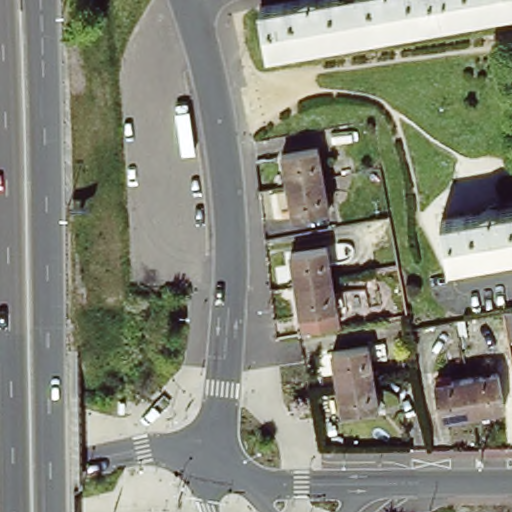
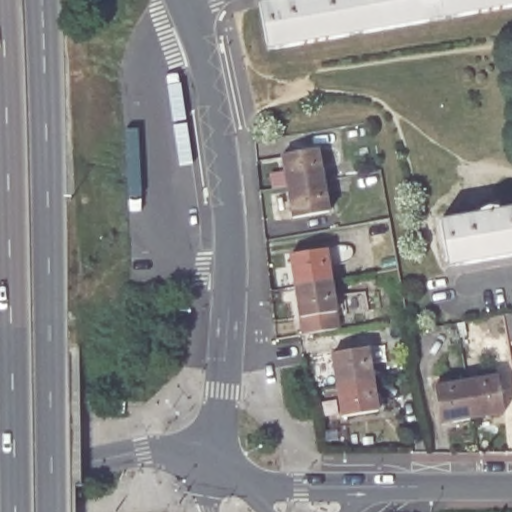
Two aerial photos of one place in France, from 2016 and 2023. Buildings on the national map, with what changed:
unchanged [(260,6),(291,0),(512,0),(512,9),(268,52),(260,6)]
unchanged [(284,157),(319,150),(324,181),(289,187),(284,157)]
unchanged [(324,181),(330,213),(294,220),(289,187),(324,181)]
unchanged [(488,217),(487,212),(498,209),(499,215),(512,213),(512,259),(450,270),(442,225),(488,217)]
unchanged [(294,256),(329,249),(334,282),(299,287),(294,256)]
unchanged [(334,282),(339,313),(304,318),(299,287),(334,282)]
unchanged [(512,338),(507,340),(502,313),(512,312),(512,338)]
unchanged [(334,354),(368,347),(373,380),(339,386),(334,354)]
unchanged [(373,380),(378,411),(344,417),(339,386),(373,380)]
unchanged [(498,381),(504,416),(474,422),(467,387),(498,381)]
unchanged [(474,422),(441,427),(434,392),(467,387),(474,422)]

